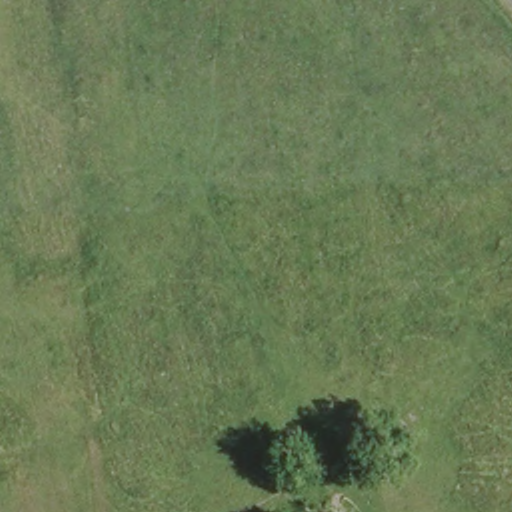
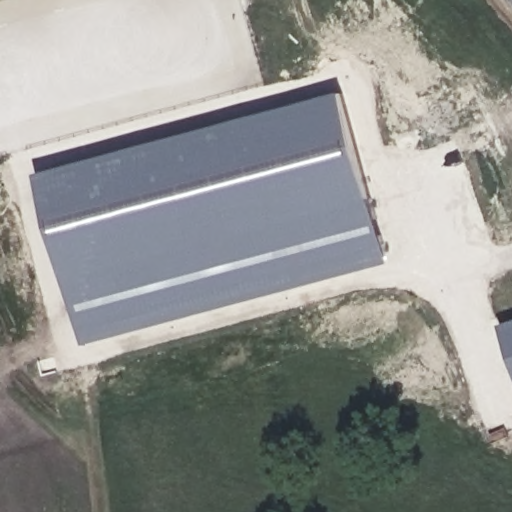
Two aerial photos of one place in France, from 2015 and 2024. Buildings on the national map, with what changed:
new [(35,175),(344,92),(390,263),(82,345),(35,175)]
new [(512,323),(512,357),(506,340),(501,326),(512,323)]

